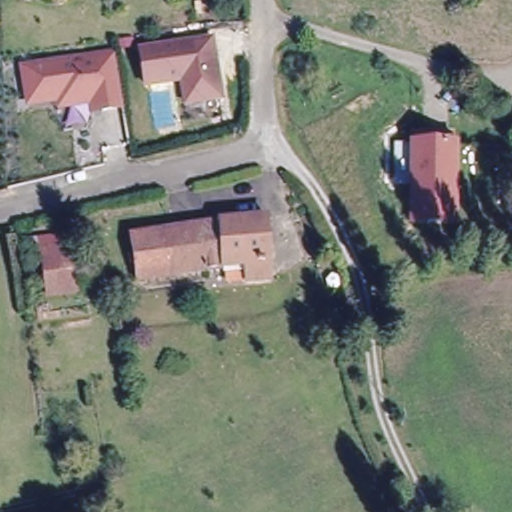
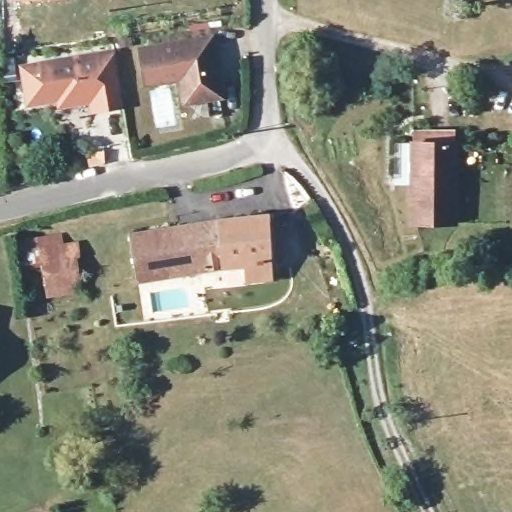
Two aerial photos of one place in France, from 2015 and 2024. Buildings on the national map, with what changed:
unchanged [(216,52),(211,53),(212,62),(217,62),(222,95),(186,99),(183,76),(147,81),(142,45),(214,35),(216,52)]
unchanged [(94,100),(62,105),(61,98),(30,103),(24,67),(115,53),(116,55),(124,106),(104,109),(95,110),(94,100)]
unchanged [(504,99),(476,88),(480,73),(510,85),(504,99)]
unchanged [(460,224),(417,226),(414,146),(457,144),(460,224)]
unchanged [(270,211),(273,257),(269,258),(270,270),(250,272),(249,259),(226,260),(223,216),(270,211)]
unchanged [(226,260),(141,276),(135,231),(223,216),(226,260)]
unchanged [(90,287),(49,296),(47,285),(30,289),(22,234),(38,228),(43,240),(59,242),(79,241),(90,287)]

